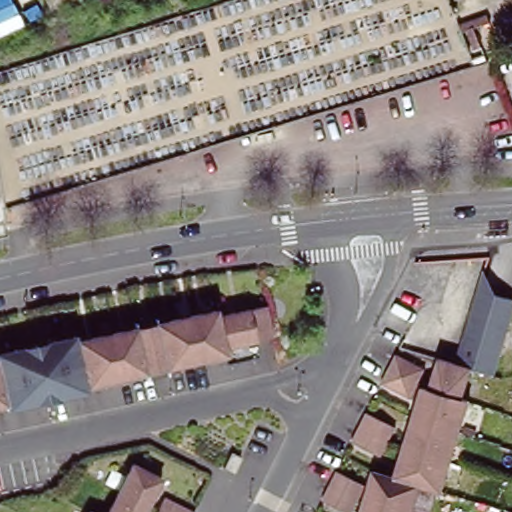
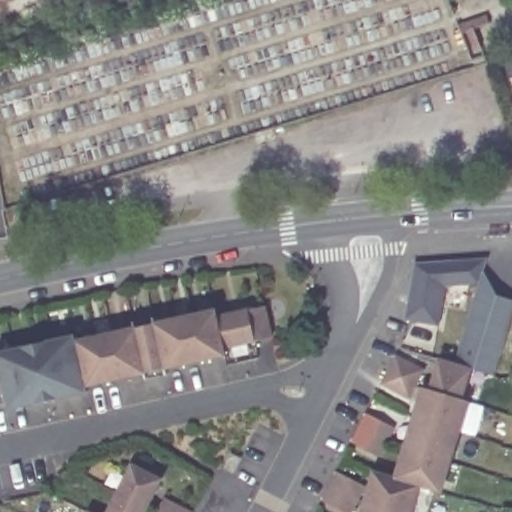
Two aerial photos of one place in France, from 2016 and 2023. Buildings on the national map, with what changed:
unchanged [(481,47),(473,50),(467,32),(461,33),(459,26),(487,16),(488,19),(489,23),(474,29),(481,47)]
unchanged [(0,227),(3,226),(4,235),(0,236),(0,227)]
unchanged [(459,359),(483,283),(487,267),(502,289),(512,293),(512,320),(496,370),(474,364),(459,359)]
unchanged [(211,310),(213,318),(262,307),(268,337),(221,349),(223,355),(30,397),(0,404),(0,358),(21,353),(211,310)]
unchanged [(384,379),(398,351),(426,365),(413,395),(384,379)]
unchanged [(384,469),(397,473),(426,382),(432,385),(442,354),(459,359),(474,364),(464,394),(472,397),(444,487),(423,481),(413,512),(362,512),(376,467),(384,469)]
unchanged [(349,442),(364,414),(392,428),(378,457),(349,442)]
unchanged [(221,469),(228,453),(238,458),(229,473),(221,469)]
unchanged [(165,476),(145,512),(108,512),(135,461),(165,476)]
unchanged [(324,496),(339,468),(368,482),(353,511),(324,496)]
unchanged [(187,512),(157,512),(163,499),(187,512)]
unchanged [(100,512),(89,512),(91,508),(100,512)]

